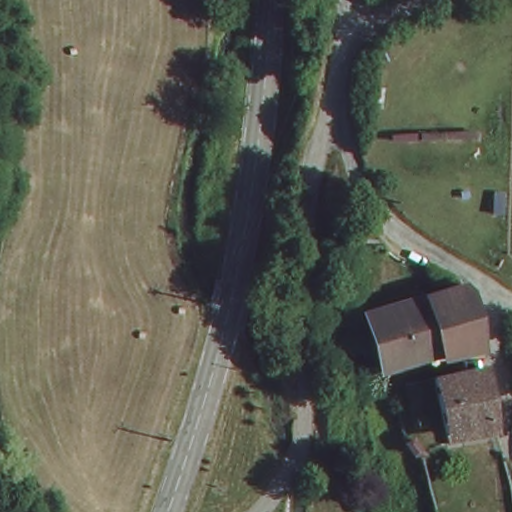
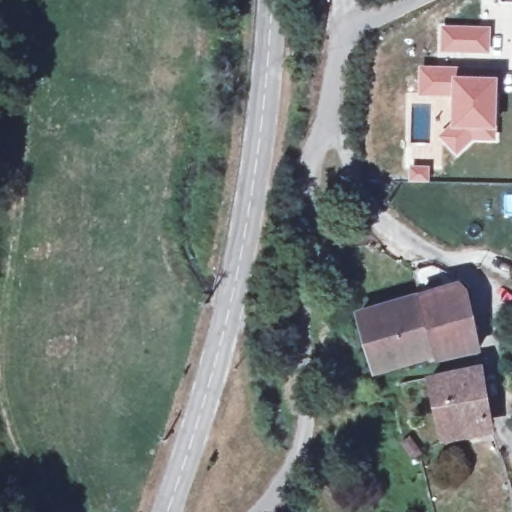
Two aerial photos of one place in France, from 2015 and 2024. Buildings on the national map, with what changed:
new [(440,24),(492,25),(490,53),(440,52),(440,24)]
new [(419,65),(457,66),(456,75),(454,75),(452,96),(418,95),(419,65)]
new [(450,122),(452,96),(454,75),(456,75),(497,76),(497,141),(473,142),(457,157),(436,136),(450,122)]
unchanged [(420,300),(461,290),(469,300),(480,352),(440,360),(421,302),(420,300)]
unchanged [(440,360),(372,372),(361,313),(421,302),(440,360)]
unchanged [(491,432),(437,437),(427,382),(443,379),(478,372),(491,432)]

